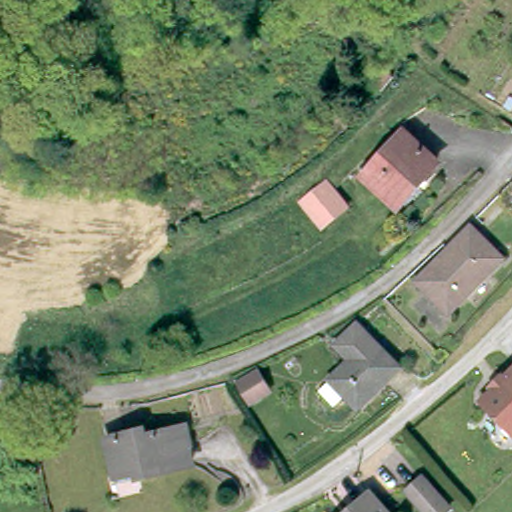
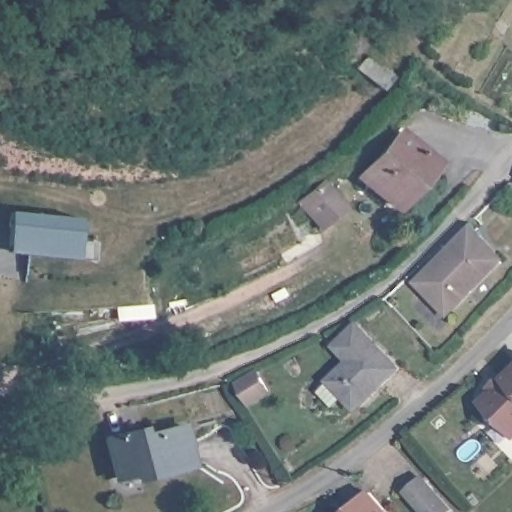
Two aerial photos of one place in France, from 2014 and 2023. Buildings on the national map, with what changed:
unchanged [(393,78),(383,92),(366,77),(356,69),(367,56),(373,60),(393,78)]
unchanged [(420,182),(417,180),(393,207),(359,178),(400,132),(435,164),(420,182)]
unchanged [(322,219),(301,194),(325,174),(345,198),(322,219)]
demolished [(72,204),(108,211),(106,223),(55,226),(19,223),(0,222),(0,207),(17,204),(17,218),(71,209),(72,204)]
new [(8,211),(80,219),(76,258),(4,250),(8,211)]
demolished [(19,223),(55,226),(106,223),(102,247),(0,258),(0,222),(19,223)]
unchanged [(448,315),(419,286),(459,246),(456,243),(470,229),(502,261),(448,315)]
unchanged [(325,382),(335,372),(355,353),(340,337),(347,331),(361,317),(405,361),(363,401),(351,387),(340,398),(325,382)]
unchanged [(264,390),(245,398),(236,376),(255,368),(264,390)]
unchanged [(501,373),(504,376),(512,368),(512,433),(479,400),(491,389),(488,386),(501,373)]
unchanged [(146,437),(185,428),(190,445),(186,447),(191,464),(161,471),(161,474),(141,480),(139,472),(114,479),(104,440),(143,430),(146,437)]
unchanged [(445,512),(424,512),(405,491),(420,477),(449,508),(445,512)]
unchanged [(350,503),(369,486),(393,512),(345,512),(352,506),(350,503)]

